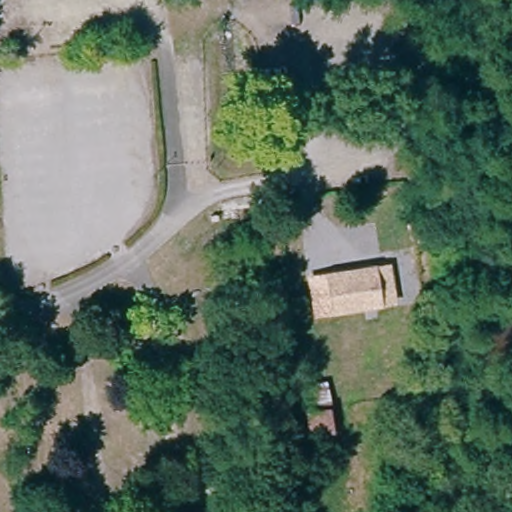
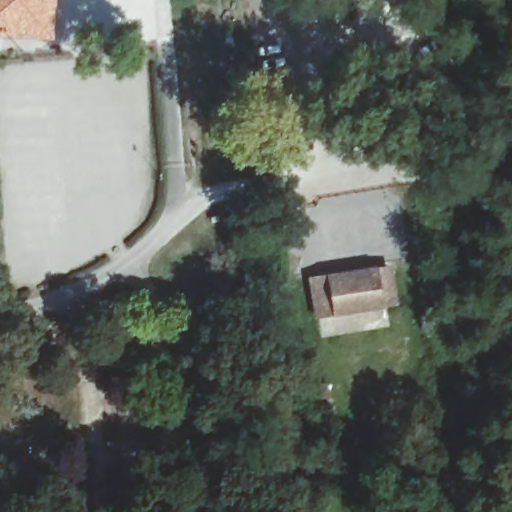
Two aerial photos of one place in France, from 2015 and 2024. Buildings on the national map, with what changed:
new [(0,36),(0,0),(56,0),(53,40),(0,36)]
unchanged [(391,262),(395,302),(314,310),(309,270),(391,262)]
unchanged [(323,436),(309,436),(305,409),(333,407),(337,431),(339,459),(325,462),(323,436)]

